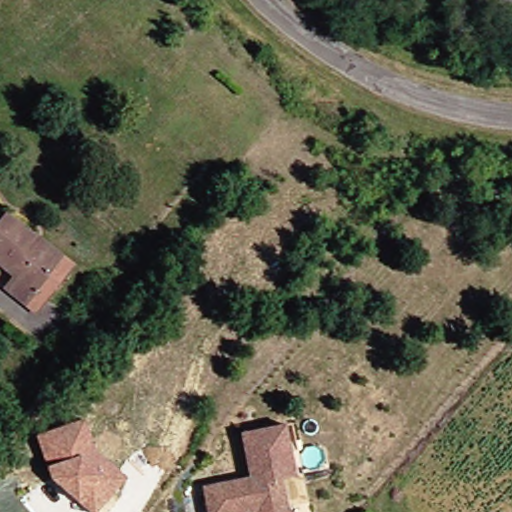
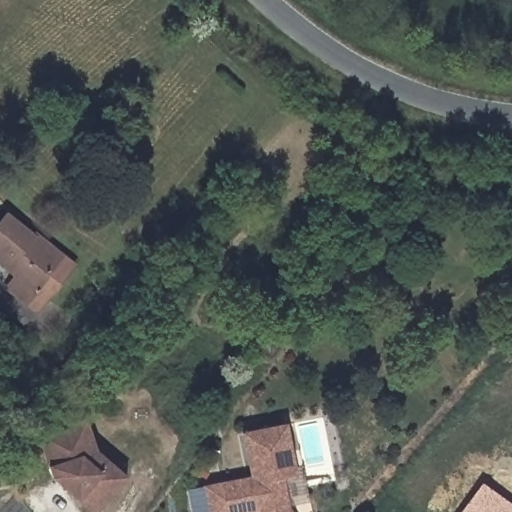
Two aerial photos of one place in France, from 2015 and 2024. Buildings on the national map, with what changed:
unchanged [(32,309),(10,292),(18,281),(0,266),(0,231),(10,219),(36,239),(38,237),(66,259),(61,265),(38,294),(42,297),(32,309)]
unchanged [(113,494),(98,512),(89,512),(53,479),(36,437),(83,423),(94,454),(125,480),(113,494)]
unchanged [(203,487),(250,477),(241,433),(284,424),(295,474),(281,478),(287,505),(291,512),(209,512),(203,487)]
new [(481,483),(512,505),(512,512),(460,512),(481,483)]

